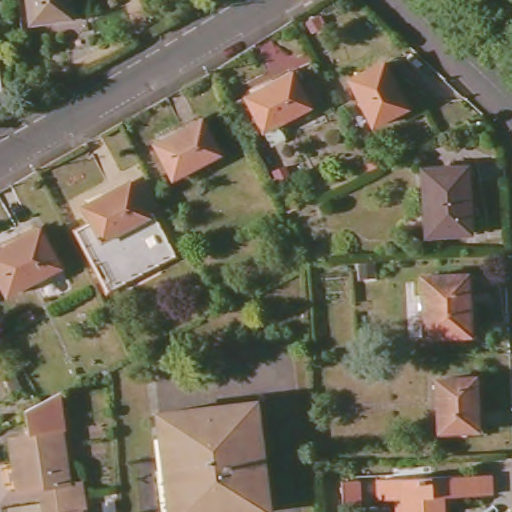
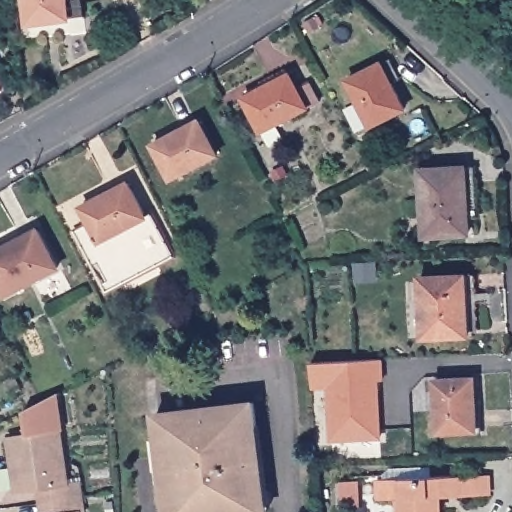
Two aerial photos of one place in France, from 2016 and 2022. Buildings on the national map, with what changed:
unchanged [(29,0),(68,0),(70,16),(32,22),(29,0)]
unchanged [(70,16),(68,0),(84,0),(85,14),(70,16)]
unchanged [(373,124),(350,80),(384,63),(407,107),(373,124)]
unchanged [(263,130),(246,98),(292,74),(301,91),(313,85),(320,101),(263,130)]
unchanged [(1,89),(0,90),(0,81),(1,89)]
unchanged [(172,178),(155,145),(201,121),(218,154),(172,178)]
unchanged [(426,234),(423,170),(466,168),(470,233),(426,234)]
unchanged [(103,291),(71,230),(86,223),(77,207),(125,183),(142,215),(147,213),(170,256),(103,291)]
unchanged [(0,280),(0,251),(39,230),(58,266),(7,294),(0,280)]
unchanged [(425,337),(422,278),(466,276),(469,334),(425,337)]
new [(381,362),(382,383),(377,383),(380,439),(330,443),(327,389),(310,390),(310,366),(381,362)]
unchanged [(440,432),(437,379),(475,378),(476,430),(440,432)]
unchanged [(41,486),(18,489),(10,438),(30,436),(26,411),(43,402),(55,396),(61,431),(68,482),(80,480),(83,497),(44,503),(41,486)]
unchanged [(262,512),(171,512),(158,414),(255,403),(266,512),(262,512)]
unchanged [(407,498),(386,498),(385,479),(495,474),(495,494),(445,497),(446,512),(408,512),(407,498)]
unchanged [(348,509),(346,481),(364,480),(365,509),(348,509)]
unchanged [(85,512),(45,512),(44,503),(83,497),(85,512)]

